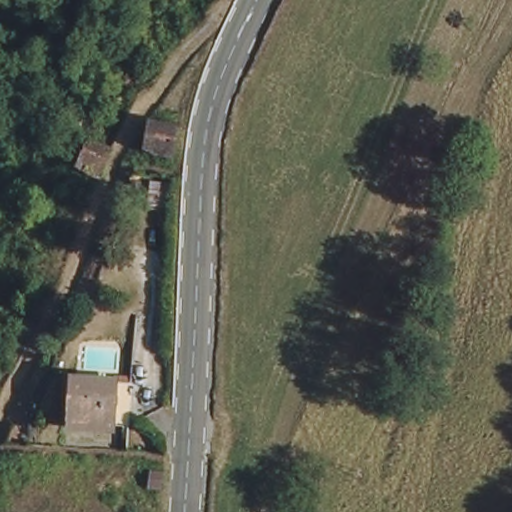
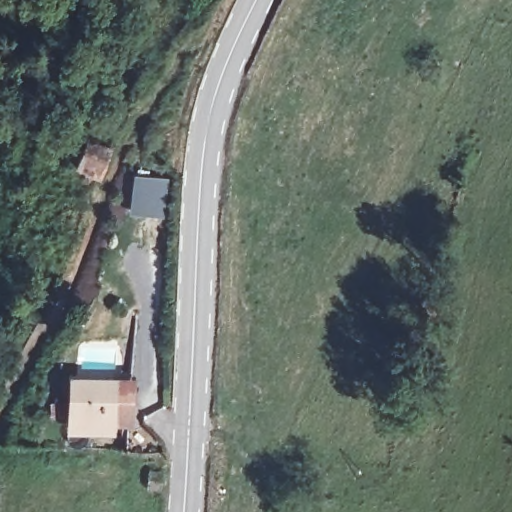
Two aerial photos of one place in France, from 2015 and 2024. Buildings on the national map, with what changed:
unchanged [(160,110),(192,116),(186,146),(154,140),(160,110)]
unchanged [(68,181),(75,162),(81,144),(85,144),(110,149),(95,186),(68,181)]
new [(131,175),(166,177),(160,221),(125,218),(131,175)]
unchanged [(113,436),(96,435),(57,430),(61,386),(100,390),(117,391),(113,436)]

